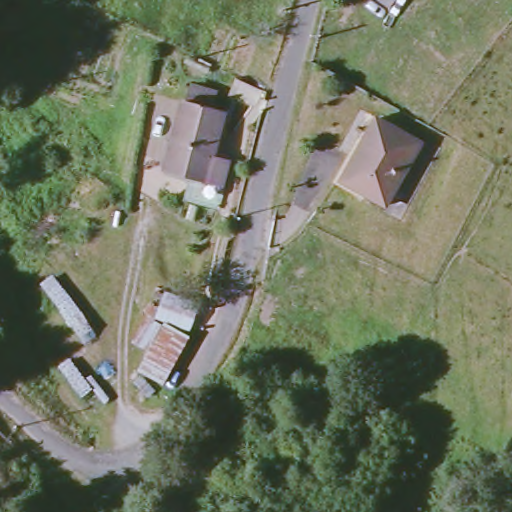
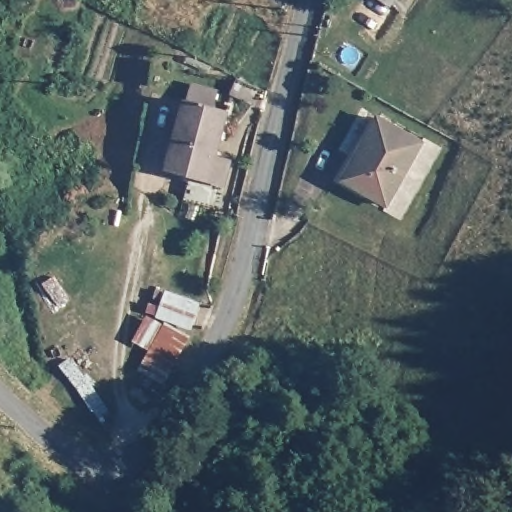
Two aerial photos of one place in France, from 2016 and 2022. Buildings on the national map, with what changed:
unchanged [(389,4),(383,0),(392,0),(389,4)]
unchanged [(230,80),(253,91),(246,107),(223,96),(230,80)]
unchanged [(178,200),(183,177),(159,170),(177,103),(181,104),(185,87),(208,92),(206,110),(219,113),(208,156),(223,162),(208,207),(178,200)]
unchanged [(384,208),(344,184),(370,139),(366,136),(376,119),(419,145),(384,208)]
unchanged [(163,312),(169,291),(201,301),(193,323),(163,312)]
unchanged [(166,381),(142,366),(168,318),(194,332),(166,381)]

